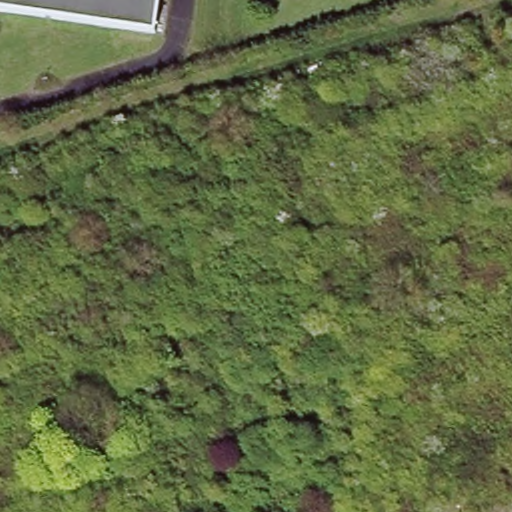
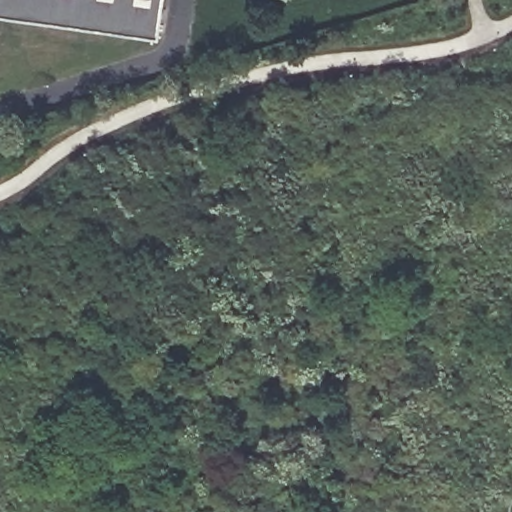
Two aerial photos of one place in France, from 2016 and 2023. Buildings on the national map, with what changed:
unchanged [(173,21),(0,1),(0,0),(176,0),(173,21)]

